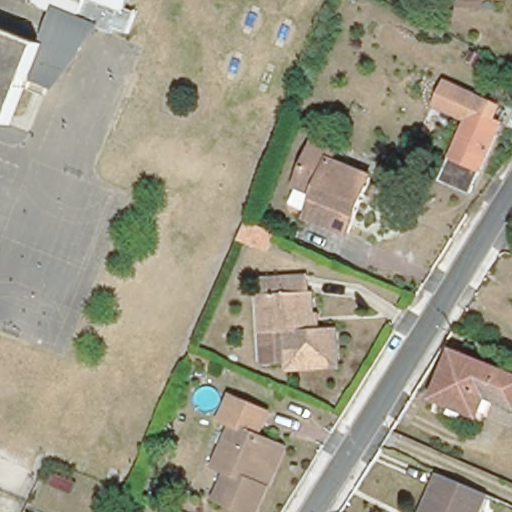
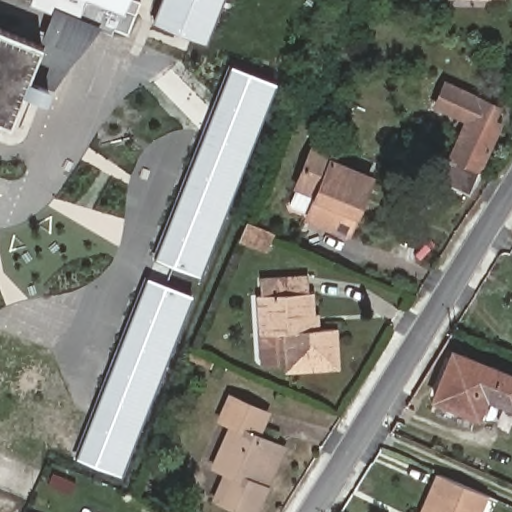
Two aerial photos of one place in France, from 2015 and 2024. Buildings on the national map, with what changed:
unchanged [(121,6),(135,12),(127,33),(112,27),(111,32),(91,24),(93,19),(77,13),(83,0),(124,0),(121,6)]
new [(140,0),(135,12),(121,6),(124,0),(138,0),(140,0)]
new [(161,0),(223,0),(207,43),(153,22),(161,0)]
unchanged [(10,124),(0,120),(0,28),(41,44),(10,124)]
new [(232,64),(277,82),(200,276),(155,258),(232,64)]
unchanged [(446,79),(502,105),(496,119),(471,108),(465,121),(432,107),(446,79)]
unchanged [(465,121),(471,108),(496,119),(502,122),(471,193),(439,179),(465,121)]
unchanged [(306,222),(318,197),(297,186),(315,147),(337,157),(334,163),(372,182),(346,240),(306,222)]
unchanged [(255,246),(249,243),(234,237),(241,219),(256,227),(261,229),(255,246)]
new [(147,277),(192,295),(121,475),(77,458),(147,277)]
unchanged [(315,335),(336,336),(338,373),(285,375),(282,337),(258,337),(256,297),(262,297),(261,280),(307,277),(308,295),(312,296),(315,335)]
unchanged [(434,396),(452,349),(512,374),(512,405),(486,395),(477,414),(434,396)]
unchanged [(260,512),(238,512),(212,500),(223,473),(217,469),(236,426),(222,419),(232,396),(273,415),(262,437),(280,445),(288,449),(271,489),(260,512)]
unchanged [(73,474),(66,488),(44,477),(51,464),(73,474)]
unchanged [(412,512),(428,472),(475,493),(467,512),(412,512)]

